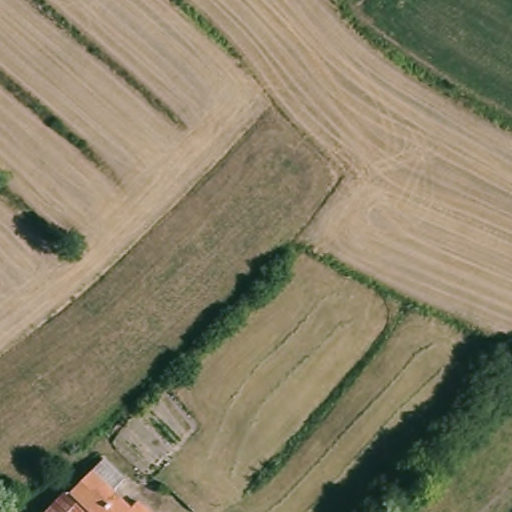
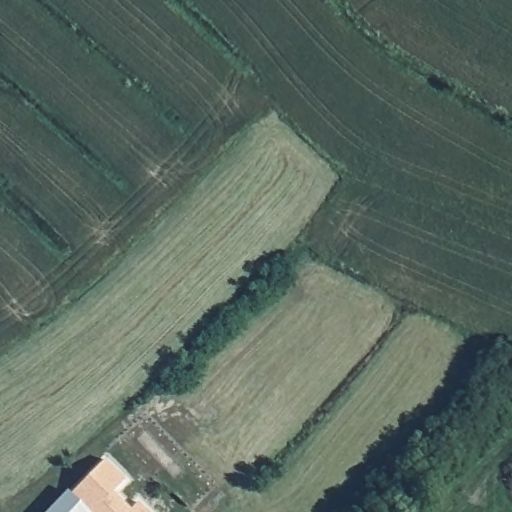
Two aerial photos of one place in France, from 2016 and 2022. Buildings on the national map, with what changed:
unchanged [(75,495),(107,458),(129,477),(116,493),(137,512),(136,512),(92,512),(75,495)]
unchanged [(68,499),(81,512),(56,512),(68,499)]
unchanged [(157,510),(159,512),(156,512),(157,510)]

